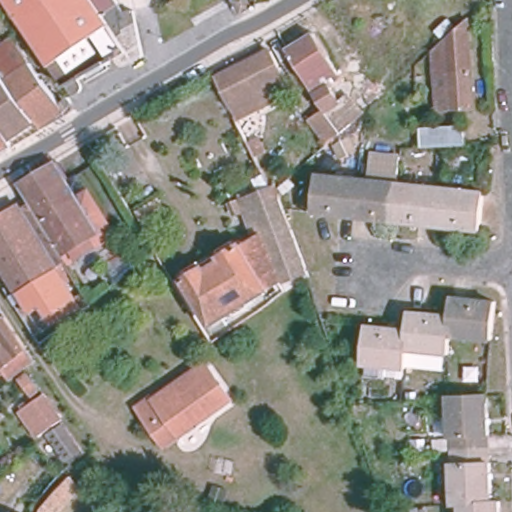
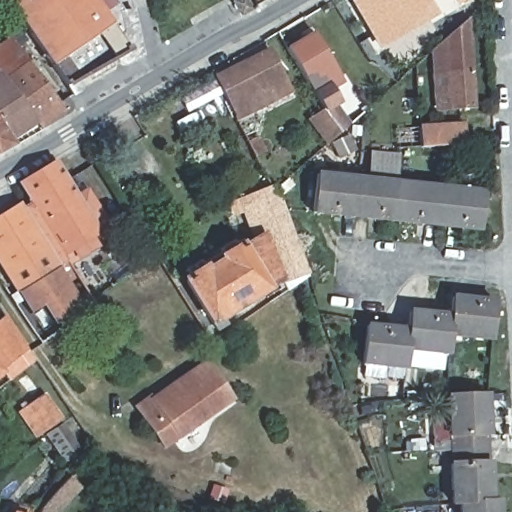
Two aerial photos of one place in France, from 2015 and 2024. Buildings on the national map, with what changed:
unchanged [(141,52),(126,59),(120,59),(114,52),(80,75),(82,81),(82,85),(74,91),(73,90),(26,22),(10,0),(118,0),(103,10),(118,32),(125,28),(121,8),(132,6),(141,52)]
unchanged [(248,4),(237,10),(232,0),(246,0),(248,4)]
new [(440,14),(378,50),(350,0),(351,0),(432,0),(440,14)]
unchanged [(468,19),(474,107),(450,107),(448,73),(435,73),(434,49),(468,19)]
unchanged [(306,119),(321,109),(283,49),(307,34),(334,75),(337,80),(327,86),(336,99),(344,94),(358,112),(335,132),(323,142),(322,144),(306,119)]
unchanged [(0,74),(0,46),(11,37),(65,114),(39,129),(0,74)]
unchanged [(236,119),(215,77),(270,49),(291,92),(236,120),(236,119)]
unchanged [(0,125),(0,74),(39,129),(13,144),(0,125)]
unchanged [(463,124),(462,144),(420,147),(420,125),(463,124)]
unchanged [(13,144),(0,152),(0,125),(13,144)]
unchanged [(247,141),(259,135),(267,151),(255,157),(247,141)]
unchanged [(369,177),(369,148),(401,152),(400,180),(369,177)]
unchanged [(53,163),(74,197),(84,191),(104,224),(57,254),(23,201),(14,185),(53,163)]
unchanged [(314,213),(317,175),(358,179),(355,216),(314,213)]
unchanged [(355,216),(358,179),(401,183),(397,221),(355,216)]
unchanged [(439,227),(397,221),(401,183),(442,187),(439,227)]
unchanged [(276,282),(217,319),(222,326),(212,332),(180,281),(238,244),(240,246),(251,239),(240,208),(266,189),(272,184),(273,187),(276,197),(284,222),(286,226),(294,249),(303,277),(282,291),(276,282)]
unchanged [(484,192),(480,231),(439,227),(442,187),(484,192)]
unchanged [(57,254),(87,303),(77,311),(74,308),(37,331),(0,273),(0,215),(23,201),(57,254)]
unchanged [(452,315),(454,297),(497,301),(492,339),(450,335),(452,315)]
unchanged [(448,354),(407,349),(409,329),(410,311),(452,315),(450,335),(448,354)]
unchanged [(30,365),(4,385),(0,379),(0,321),(2,323),(27,362),(30,365)]
unchanged [(407,349),(405,367),(364,363),(367,325),(409,329),(407,349)]
unchanged [(150,395),(152,398),(205,363),(231,401),(163,446),(136,405),(150,395)]
unchanged [(32,395),(29,390),(35,386),(38,390),(32,395)]
unchanged [(449,393),(489,390),(491,445),(452,446),(449,393)]
unchanged [(42,396),(60,421),(40,435),(22,409),(42,396)]
unchanged [(61,424),(79,452),(76,456),(68,464),(46,434),(61,424)]
unchanged [(494,497),(461,499),(454,498),(452,446),(491,445),(494,497)]
unchanged [(48,512),(30,512),(31,508),(60,475),(72,488),(48,512)]
unchanged [(461,499),(494,497),(499,497),(500,512),(462,512),(461,502),(461,499)]

